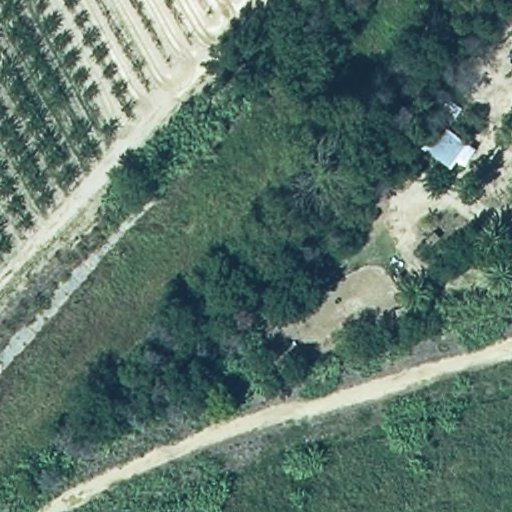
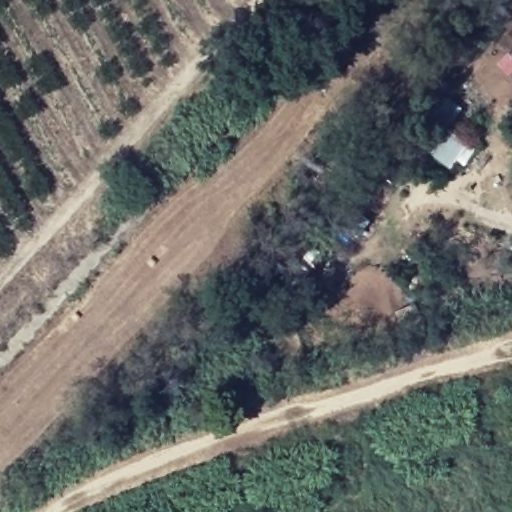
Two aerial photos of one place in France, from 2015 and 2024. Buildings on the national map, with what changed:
unchanged [(452,109),(443,131),(463,148),(445,175),(413,152),(388,190),(370,172),(414,111),(422,118),(436,96),(452,109)]

